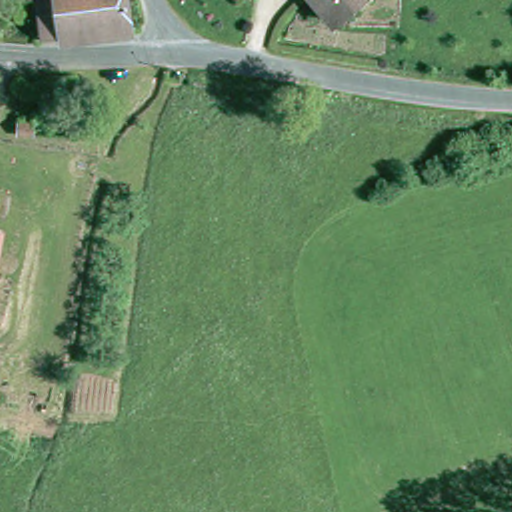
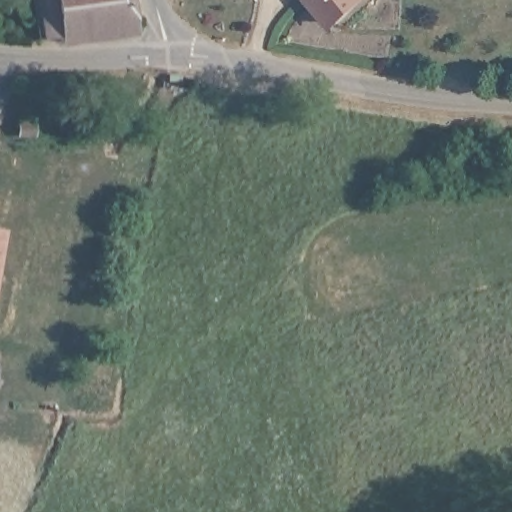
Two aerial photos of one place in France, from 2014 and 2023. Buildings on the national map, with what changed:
unchanged [(65,39),(40,42),(33,0),(132,0),(137,30),(66,44),(65,39)]
unchanged [(335,21),(317,0),(358,0),(335,21)]
unchanged [(3,232),(0,250),(0,231),(3,232)]

